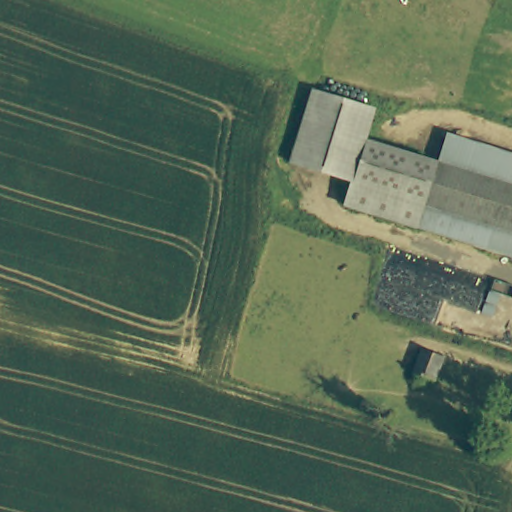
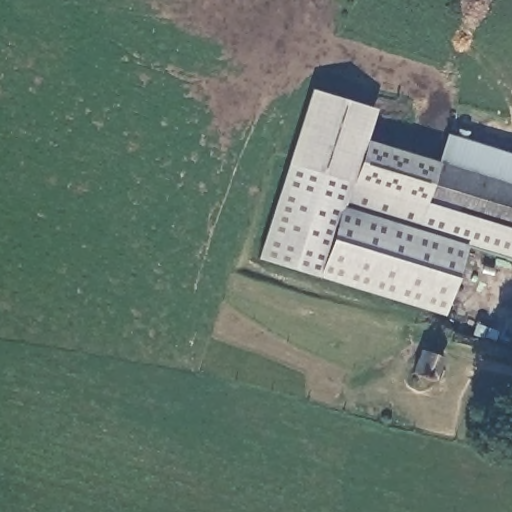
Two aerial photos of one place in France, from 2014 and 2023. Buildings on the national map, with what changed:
unchanged [(362,135),(436,160),(458,168),(466,170),(512,186),(512,255),(467,241),(340,200),(346,175),(286,155),(310,83),(373,104),(362,135)]
unchanged [(512,186),(466,170),(458,168),(436,160),(445,134),(462,140),(512,157),(512,186)]
new [(292,156),(346,175),(340,200),(467,241),(443,315),(261,259),(292,156)]
unchanged [(444,345),(437,373),(430,372),(428,380),(416,377),(417,370),(410,368),(417,340),(435,343),(444,345)]

